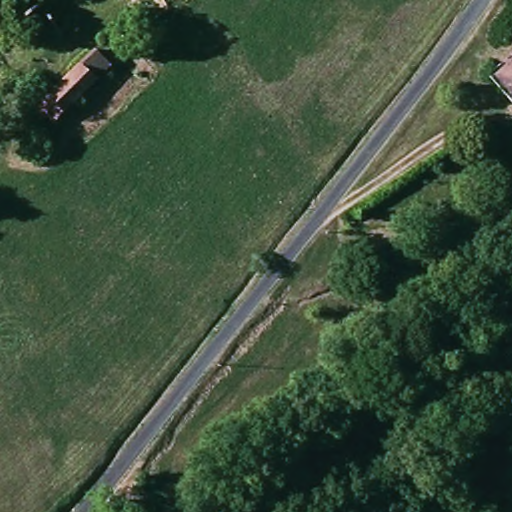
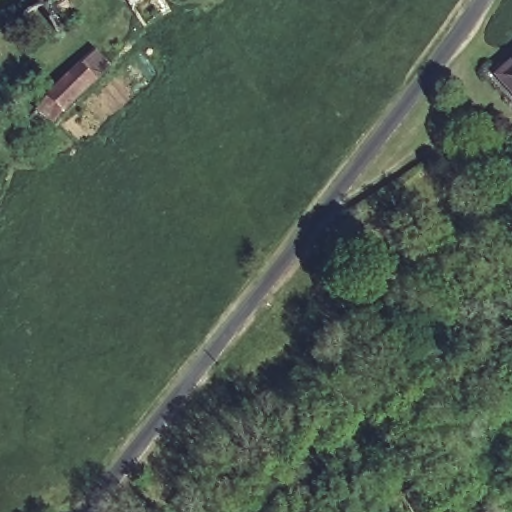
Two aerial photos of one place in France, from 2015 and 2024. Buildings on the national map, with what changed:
unchanged [(124,52),(60,115),(50,125),(37,111),(93,52),(97,58),(114,44),(124,52)]
unchanged [(507,78),(512,74),(512,85),(507,78)]
unchanged [(399,330),(384,342),(376,327),(389,316),(399,330)]

